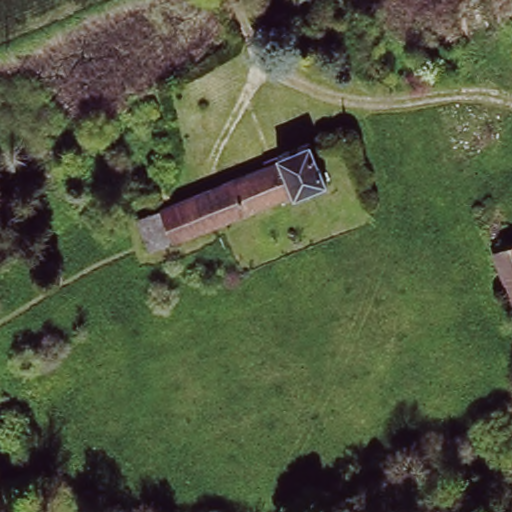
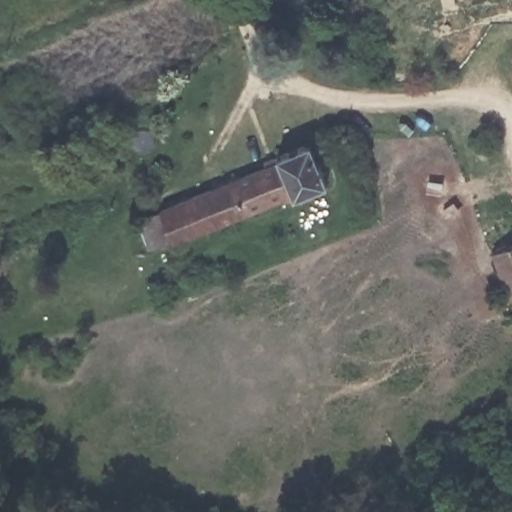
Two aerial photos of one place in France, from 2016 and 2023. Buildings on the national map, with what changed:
unchanged [(512,40),(512,46),(510,41),(512,40)]
unchanged [(281,164),(277,155),(307,142),(312,153),(325,185),(295,198),(294,195),(175,243),(163,212),(196,199),(281,164)]
unchanged [(512,247),(512,313),(491,256),(512,247)]

